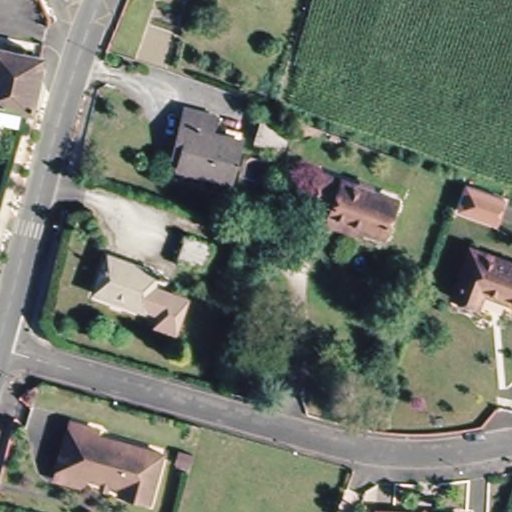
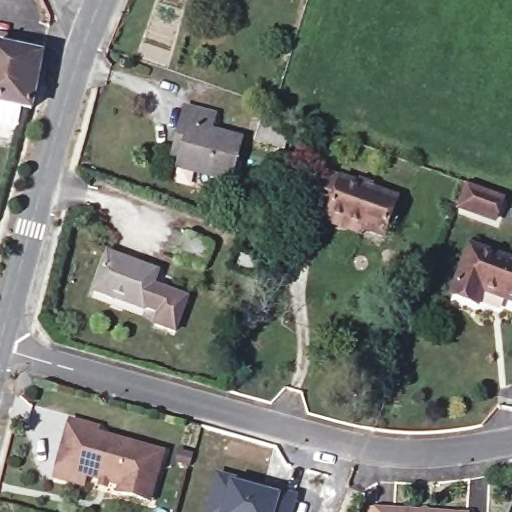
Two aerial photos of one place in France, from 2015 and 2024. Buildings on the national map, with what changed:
unchanged [(19,118),(0,114),(0,43),(12,45),(13,38),(24,41),(22,48),(43,52),(30,104),(22,103),(19,118)]
unchanged [(231,177),(179,164),(185,139),(177,137),(186,103),(216,111),(211,127),(241,135),(231,177)]
unchanged [(285,150),(254,140),(261,119),(292,128),(285,150)]
unchanged [(327,222),(329,217),(331,212),(311,205),(324,172),(398,199),(384,237),(363,229),(361,234),(327,222)]
unchanged [(505,198),(496,222),(454,207),(462,183),(505,198)]
unchanged [(205,268),(178,258),(186,235),(214,244),(205,268)]
unchanged [(479,287),(474,300),(447,290),(465,241),(512,259),(512,299),(479,287)]
unchanged [(153,281),(187,294),(175,327),(156,319),(160,308),(145,302),(145,305),(95,287),(109,249),(158,267),(153,281)]
unchanged [(45,483),(47,473),(61,425),(90,433),(89,439),(154,457),(140,506),(108,497),(110,491),(76,482),(74,491),(45,483)]
new [(294,512),(204,512),(218,469),(238,476),(237,480),(283,495),(287,488),(299,492),(294,512)]
unchanged [(369,512),(370,500),(467,506),(467,512),(369,512)]

